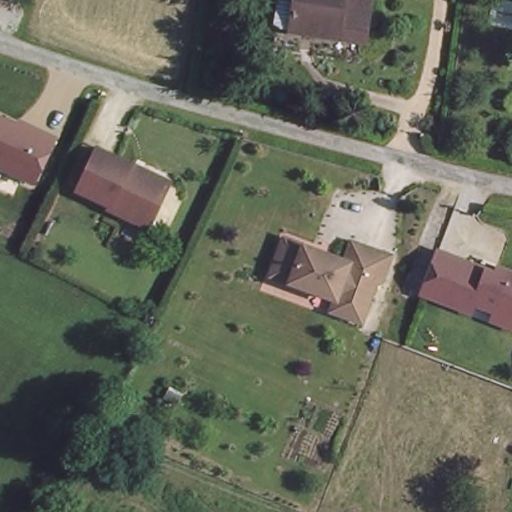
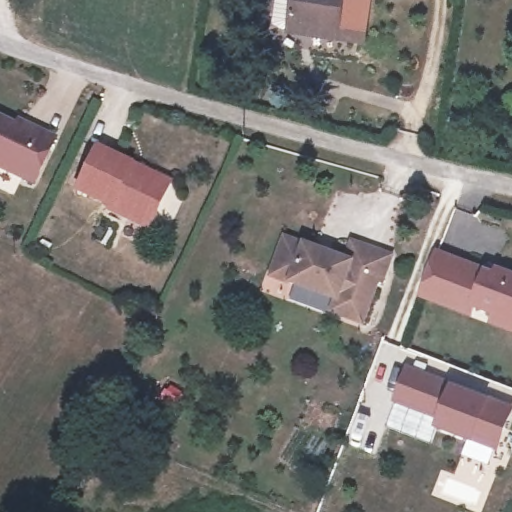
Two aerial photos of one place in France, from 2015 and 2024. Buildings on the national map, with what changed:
unchanged [(295,30),(299,0),(375,0),(370,39),(295,30)]
unchanged [(41,130),(55,138),(32,182),(0,165),(0,115),(38,135),(41,130)]
unchanged [(133,218),(113,210),(114,206),(80,192),(97,149),(172,179),(156,218),(153,226),(133,218)]
unchanged [(345,262),(352,244),(390,258),(380,284),(377,282),(360,324),(330,312),(334,301),(288,283),(270,276),(276,260),(284,238),(345,262)]
unchanged [(485,268),(489,261),(512,270),(512,330),(419,296),(437,249),(485,268)]
new [(437,418),(392,401),(405,364),(452,381),(490,396),(512,405),(512,414),(499,449),(473,438),(435,426),(437,418)]

